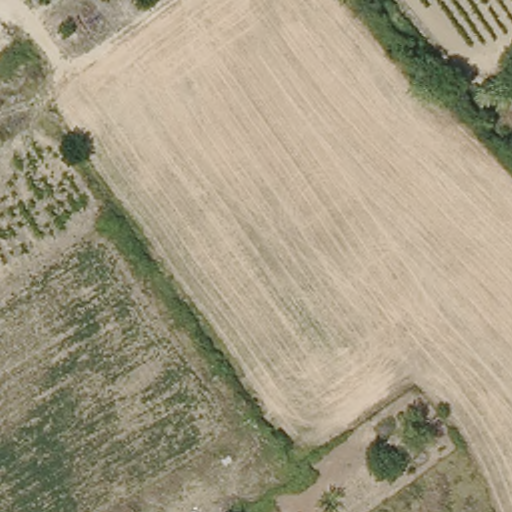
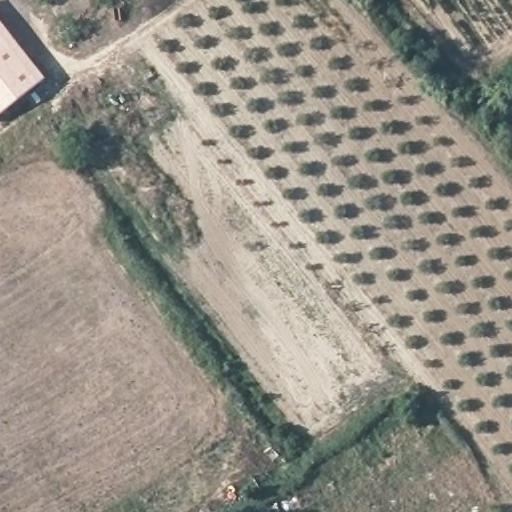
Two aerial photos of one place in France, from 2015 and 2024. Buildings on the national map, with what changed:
new [(37,76),(0,106),(0,30),(37,76)]

